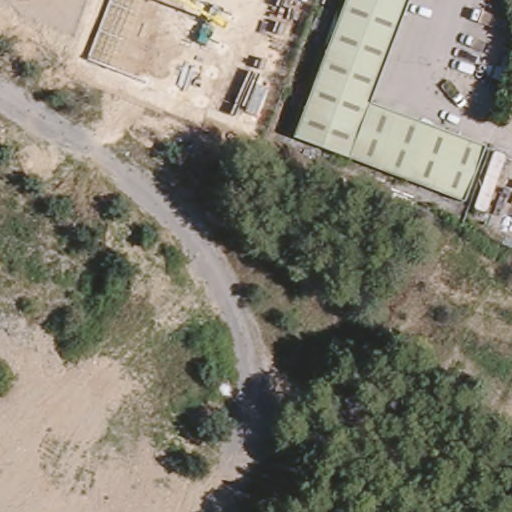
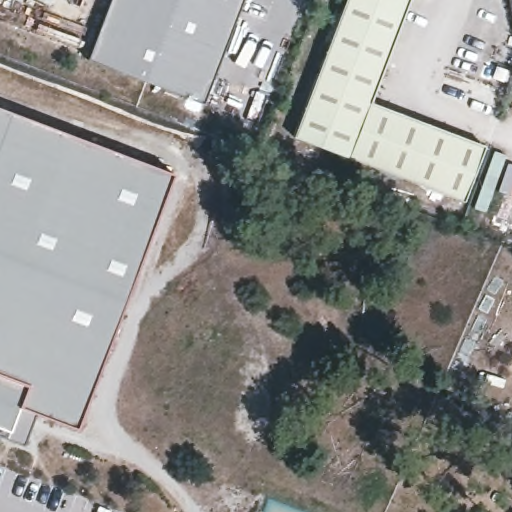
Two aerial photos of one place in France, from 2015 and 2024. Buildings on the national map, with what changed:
new [(203,104),(88,61),(111,0),(242,0),(203,104)]
unchanged [(370,98),(482,141),(460,198),(296,134),(345,0),(407,0),(370,98)]
new [(77,428),(39,415),(25,447),(0,438),(0,110),(174,173),(77,428)]

